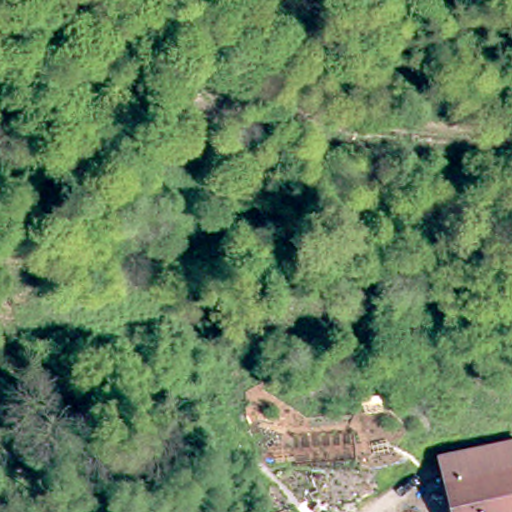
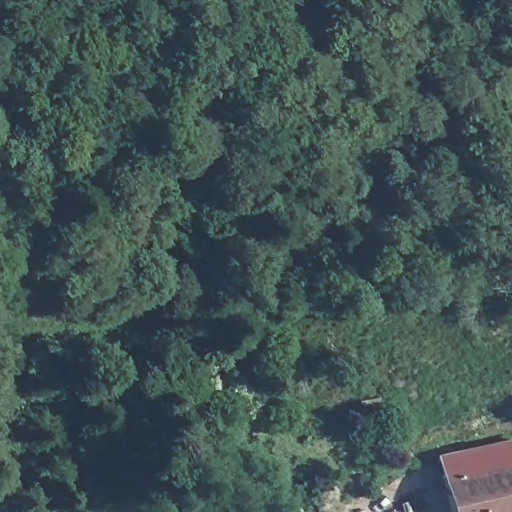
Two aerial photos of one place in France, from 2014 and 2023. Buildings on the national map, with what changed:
unchanged [(512,446),(512,512),(460,512),(450,460),(512,446)]
unchanged [(288,506),(289,512),(271,512),(270,511),(288,506)]

